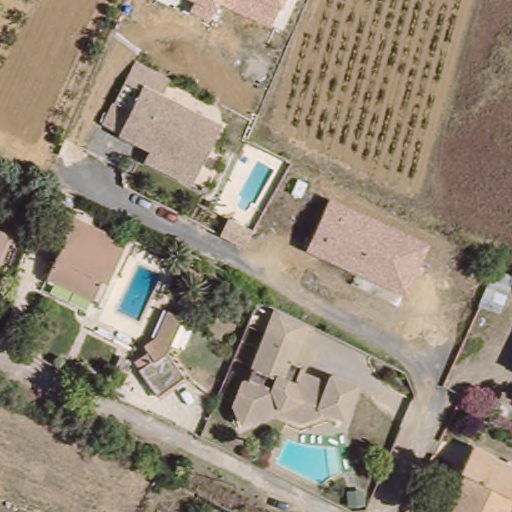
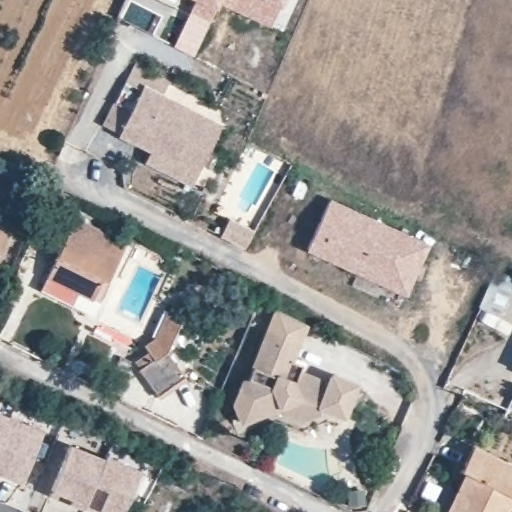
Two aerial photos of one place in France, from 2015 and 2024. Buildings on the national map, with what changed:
unchanged [(221,4),(211,20),(188,12),(194,0),(285,0),(273,24),(221,4)]
unchanged [(138,84),(115,132),(99,126),(133,60),(171,77),(163,96),(138,84)]
unchanged [(193,170),(115,132),(138,84),(216,123),(193,170)]
unchanged [(408,299),(306,257),(331,203),(428,250),(408,299)]
unchanged [(63,236),(48,228),(58,204),(74,212),(63,236)]
new [(228,221),(253,233),(243,249),(220,237),(228,221)]
unchanged [(113,297),(108,295),(98,316),(51,293),(73,251),(66,247),(74,232),(131,260),(113,297)]
unchanged [(0,265),(0,241),(8,245),(0,265)]
unchanged [(494,315),(479,308),(495,272),(510,278),(494,315)]
unchanged [(246,298),(233,292),(239,280),(251,286),(246,298)]
unchanged [(299,420),(278,410),(241,425),(233,406),(244,381),(247,382),(271,311),(305,325),(290,361),(303,366),(300,373),(330,386),(333,378),(355,387),(343,417),(320,407),(318,413),(299,420)]
unchanged [(148,353),(144,347),(156,339),(168,312),(182,320),(167,352),(185,378),(158,398),(140,372),(134,363),(148,353)]
new [(0,440),(0,415),(9,418),(0,440)]
new [(42,432),(20,484),(0,476),(0,440),(9,418),(42,432)]
new [(104,460),(105,456),(141,470),(122,512),(107,512),(100,509),(99,512),(88,512),(48,498),(50,489),(68,445),(104,460)]
unchanged [(464,483),(460,482),(464,475),(473,457),(512,476),(512,510),(511,512),(449,512),(464,483)]
demolished [(156,482),(152,491),(123,478),(131,461),(159,475),(181,487),(178,494),(156,482)]

